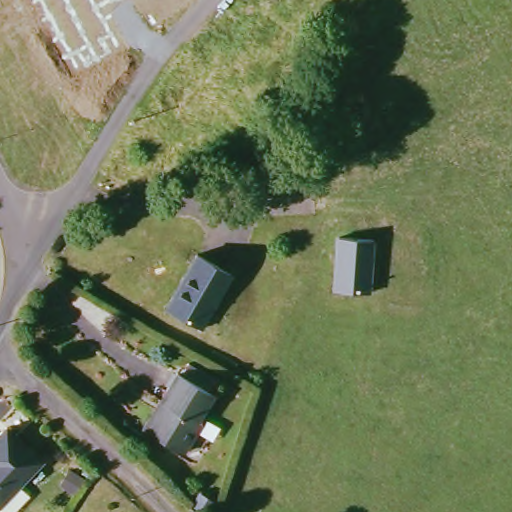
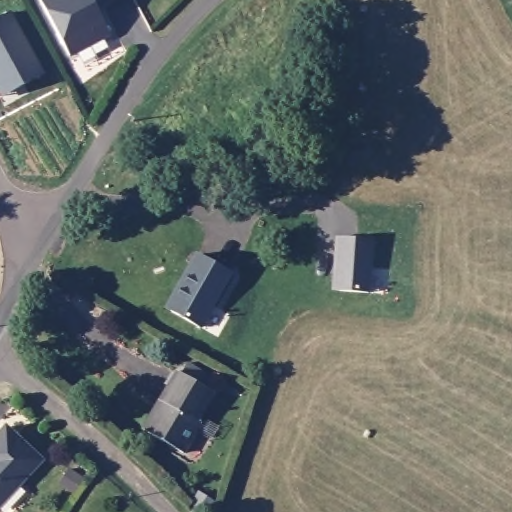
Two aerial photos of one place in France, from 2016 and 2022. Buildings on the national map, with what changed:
new [(40,0),(92,0),(108,30),(68,51),(40,0)]
new [(99,0),(102,0),(100,1),(99,0)]
new [(10,9),(42,69),(9,88),(0,73),(0,14),(10,9)]
unchanged [(335,257),(336,238),(371,240),(367,294),(339,292),(342,258),(335,257)]
unchanged [(179,276),(194,252),(227,272),(197,323),(171,307),(163,303),(179,276)]
unchanged [(156,401),(173,372),(177,374),(184,364),(211,381),(205,391),(209,393),(192,420),(197,423),(177,454),(145,435),(138,430),(156,401)]
unchanged [(35,455),(0,495),(0,424),(35,455)]
unchanged [(53,482),(63,467),(75,475),(65,490),(53,482)]

